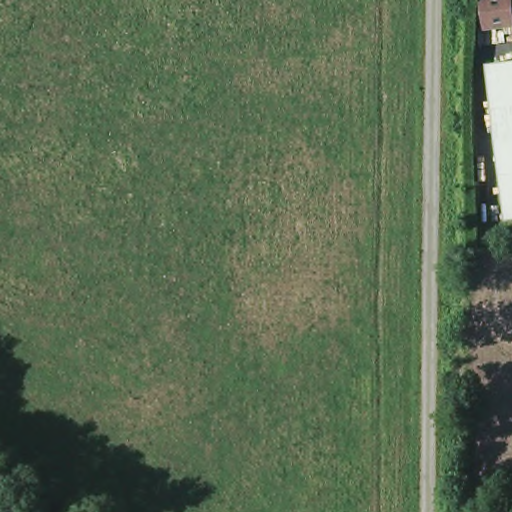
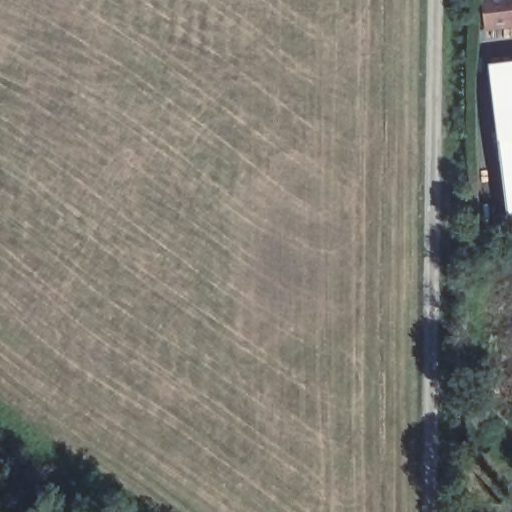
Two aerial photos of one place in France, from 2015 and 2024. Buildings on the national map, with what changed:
unchanged [(486,32),(484,0),(512,0),(512,28),(486,32)]
unchanged [(510,215),(491,62),(512,60),(512,214),(510,215)]

